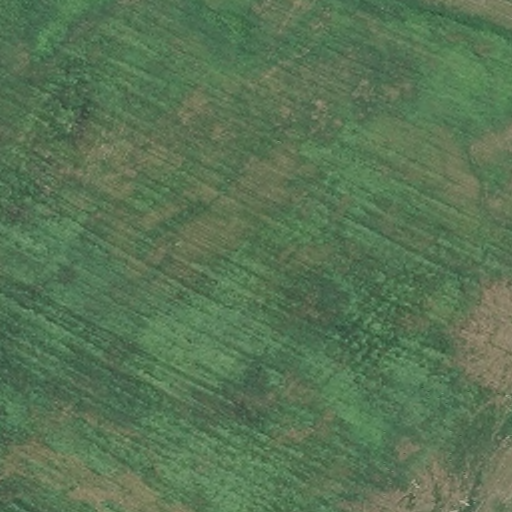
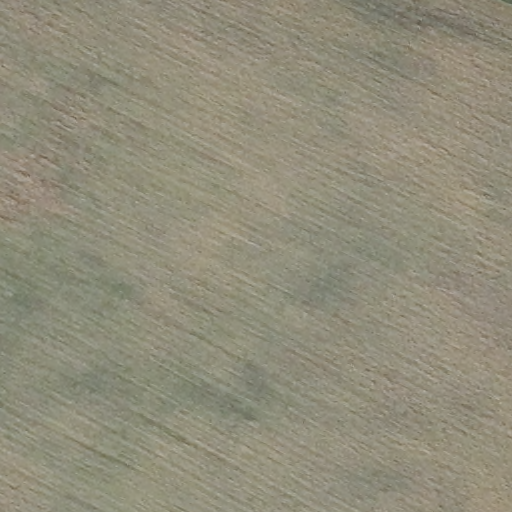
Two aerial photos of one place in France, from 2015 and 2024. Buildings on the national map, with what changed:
[]

